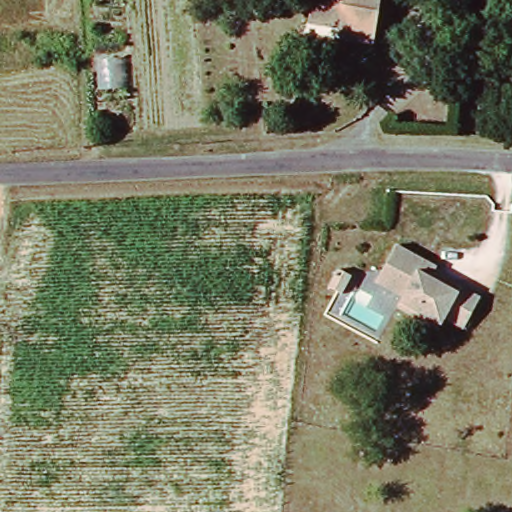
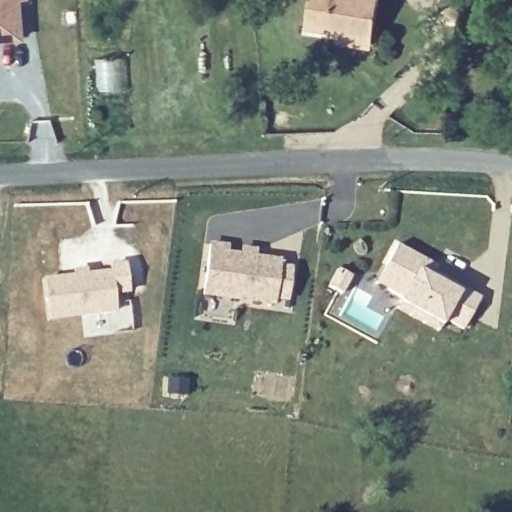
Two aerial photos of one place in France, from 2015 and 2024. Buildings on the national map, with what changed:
new [(26,39),(0,41),(0,0),(23,0),(26,39)]
unchanged [(347,39),(349,31),(317,24),(322,0),(387,0),(378,46),(347,39)]
unchanged [(441,264),(437,271),(483,294),(465,327),(448,316),(443,324),(399,303),(403,296),(376,282),(399,243),(441,264)]
new [(226,247),(226,254),(240,255),(241,249),(254,251),(253,257),(278,261),(272,304),(202,295),(209,245),(226,247)]
new [(74,271),(84,270),(85,275),(111,272),(115,310),(47,318),(43,280),(74,276),(74,271)]

